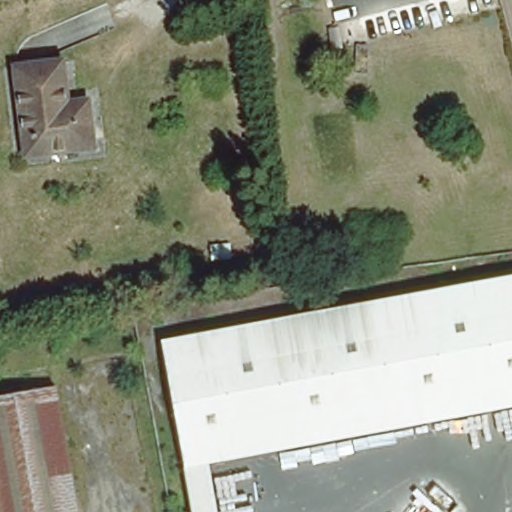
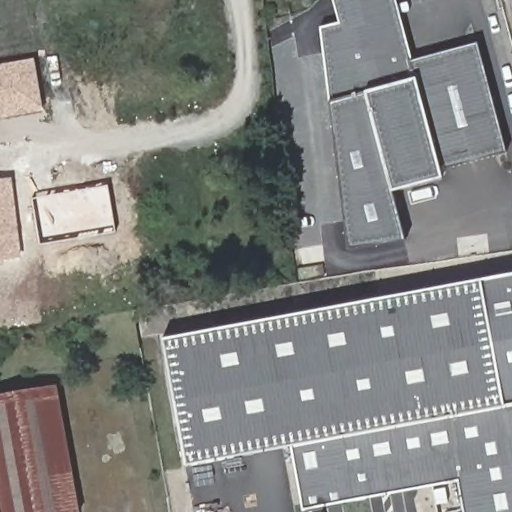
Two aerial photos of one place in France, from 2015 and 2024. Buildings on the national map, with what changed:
new [(477,45),(505,153),(440,169),(442,179),(391,193),(403,242),(347,250),(330,105),(321,29),(339,24),(332,0),(395,0),(411,61),(477,45)]
new [(0,120),(0,65),(33,60),(41,113),(0,120)]
demolished [(92,151),(24,160),(15,71),(61,68),(66,108),(87,106),(92,151)]
new [(0,260),(0,179),(8,178),(19,258),(0,260)]
new [(36,247),(28,200),(105,187),(113,234),(36,247)]
unchanged [(512,275),(512,405),(290,447),(185,466),(161,341),(512,275)]
unchanged [(55,390),(77,512),(0,512),(0,400),(55,390)]
new [(457,483),(302,512),(290,447),(512,405),(512,512),(462,512),(457,483)]

